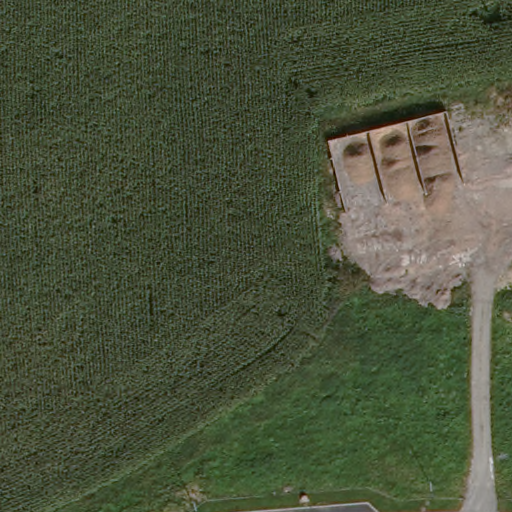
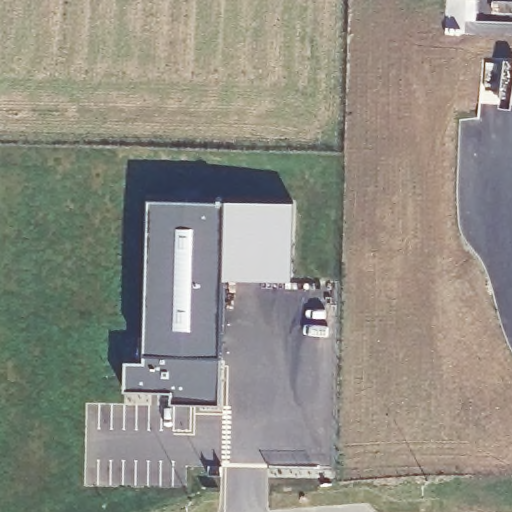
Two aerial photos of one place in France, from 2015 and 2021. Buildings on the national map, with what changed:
new [(122,360),(141,361),(145,197),(291,202),(289,280),(222,278),(218,404),(168,403),(168,392),(122,391),(122,360)]

